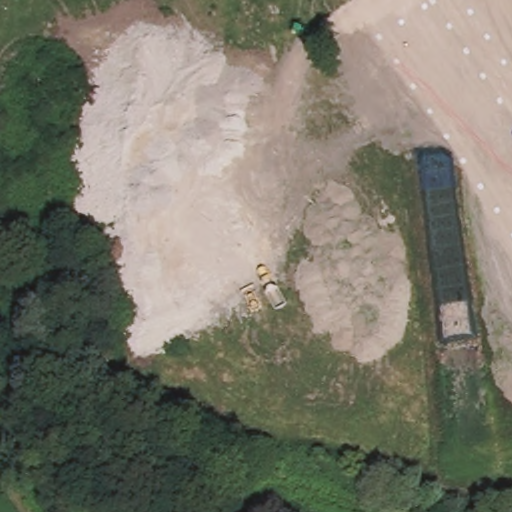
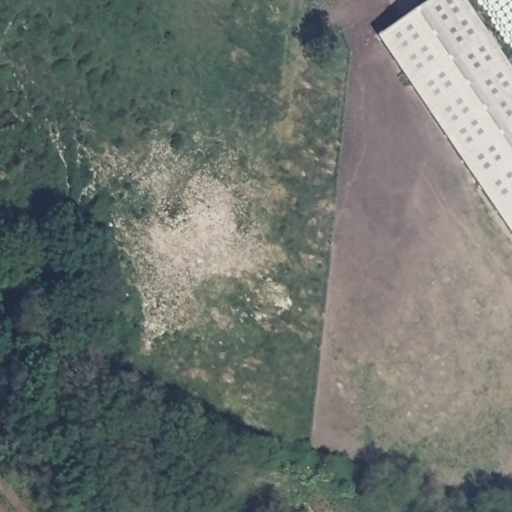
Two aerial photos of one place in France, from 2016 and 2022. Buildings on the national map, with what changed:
new [(432,0),(466,0),(512,69),(512,234),(378,36),(432,0)]

